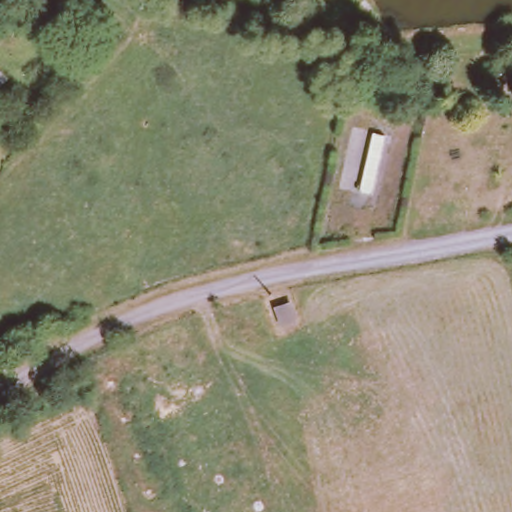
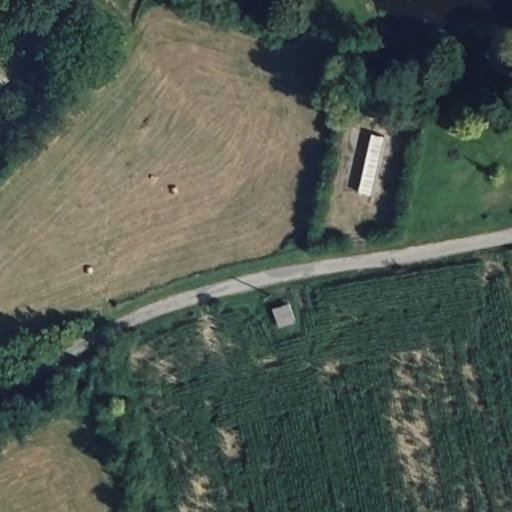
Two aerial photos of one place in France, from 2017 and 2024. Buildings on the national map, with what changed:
unchanged [(386,132),(397,135),(381,193),(369,190),(386,132)]
unchanged [(279,311),(289,306),(286,300),(291,298),(301,319),(286,326),(279,311)]

